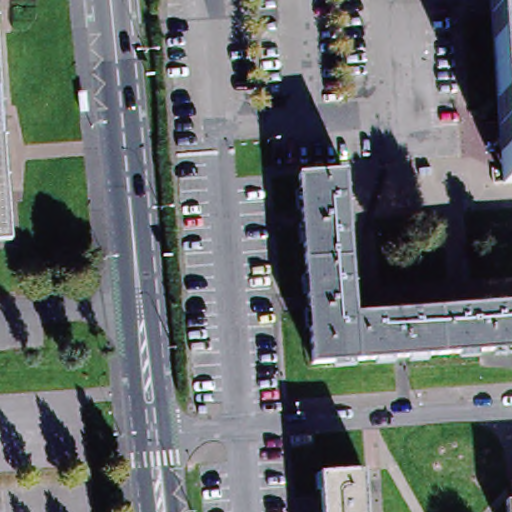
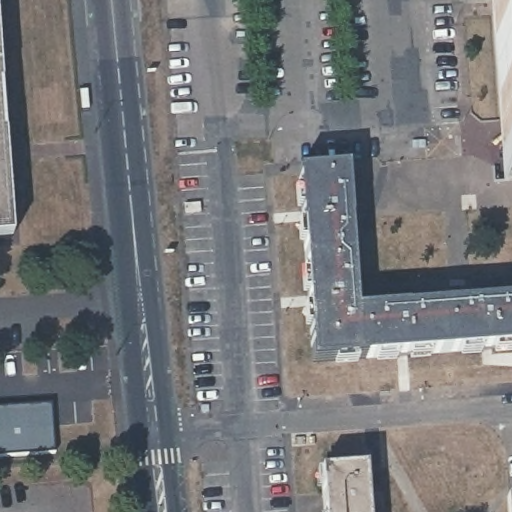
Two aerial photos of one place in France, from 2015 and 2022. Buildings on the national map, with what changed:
unchanged [(491,0),(512,0),(512,185),(504,185),(491,0)]
unchanged [(9,242),(0,242),(0,121),(9,242)]
unchanged [(345,174),(347,209),(352,209),(353,222),(349,223),(353,294),(358,294),(359,306),(354,308),(355,314),(392,312),(392,307),(403,305),(404,311),(475,305),(475,300),(488,299),(488,304),(512,303),(512,351),(313,365),(299,176),(345,174)]
new [(54,403),(55,456),(0,458),(0,404),(54,403)]
unchanged [(320,474),(364,471),(366,512),(322,512),(320,474)]
unchanged [(512,501),(512,512),(507,512),(506,501),(512,501)]

